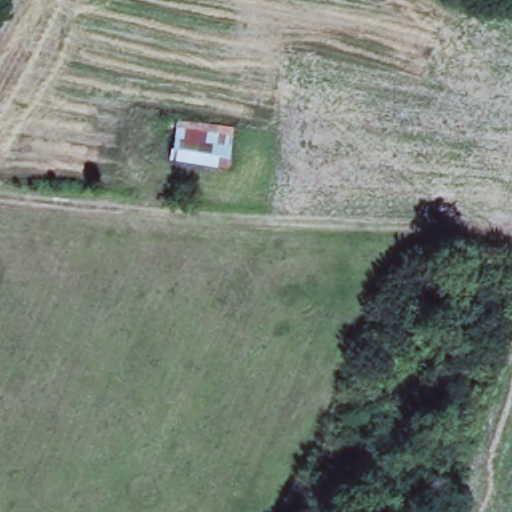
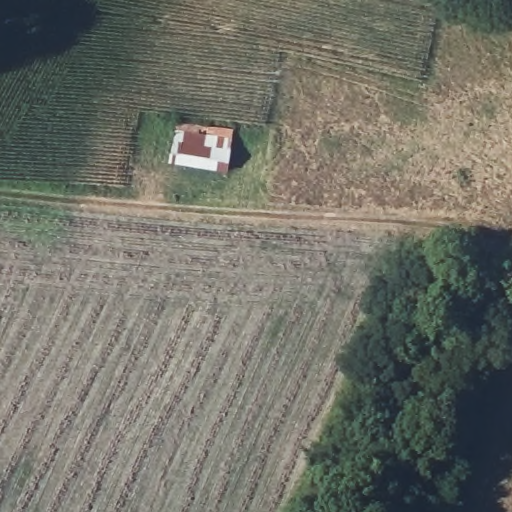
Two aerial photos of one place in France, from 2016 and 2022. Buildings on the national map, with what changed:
unchanged [(176,121),(237,127),(233,163),(172,157),(176,121)]

